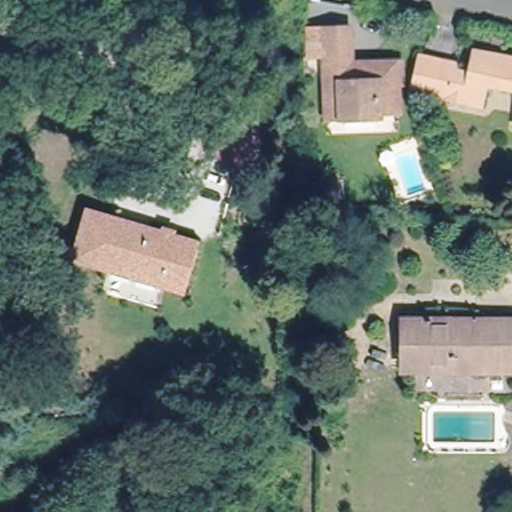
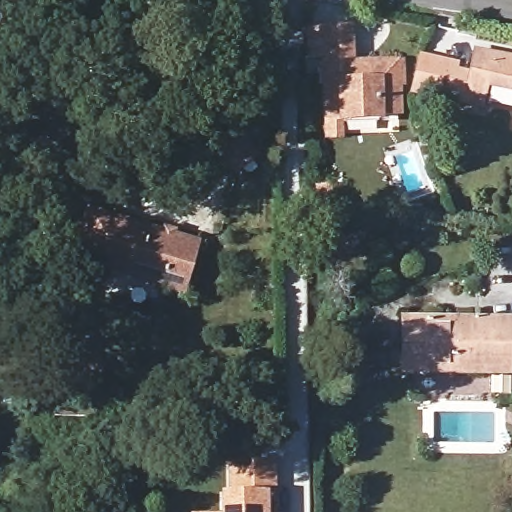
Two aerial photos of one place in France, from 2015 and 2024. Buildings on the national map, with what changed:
unchanged [(327,100),(323,28),(350,27),(352,62),(402,60),(402,69),(400,81),(398,81),(400,110),(381,111),(381,116),(346,118),(328,119),(327,100)]
unchanged [(505,38),(503,47),(490,45),(492,36),(505,38)]
unchanged [(455,63),(453,70),(469,73),(473,49),(512,57),(512,89),(485,84),(480,106),(412,90),(420,56),(455,63)]
unchanged [(235,127),(257,155),(234,173),(212,146),(235,127)]
unchanged [(214,238),(200,289),(89,256),(102,204),(214,238)]
unchanged [(402,319),(477,319),(477,327),(497,327),(497,320),(512,320),(512,371),(402,371),(402,319)]
unchanged [(333,402),(333,391),(345,391),(345,402),(333,402)]
new [(219,492),(228,492),(227,461),(275,460),(275,496),(267,495),(268,512),(206,512),(220,510),(219,492)]

